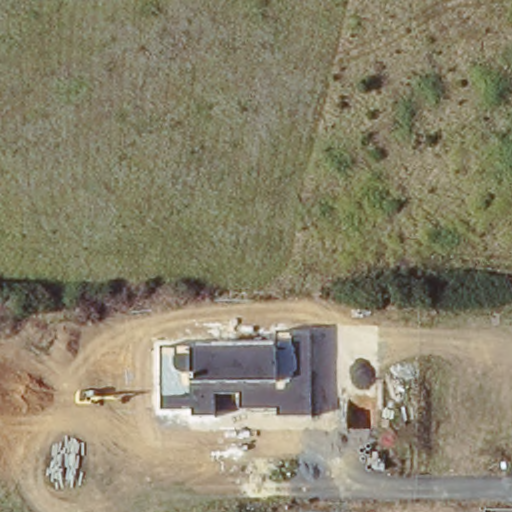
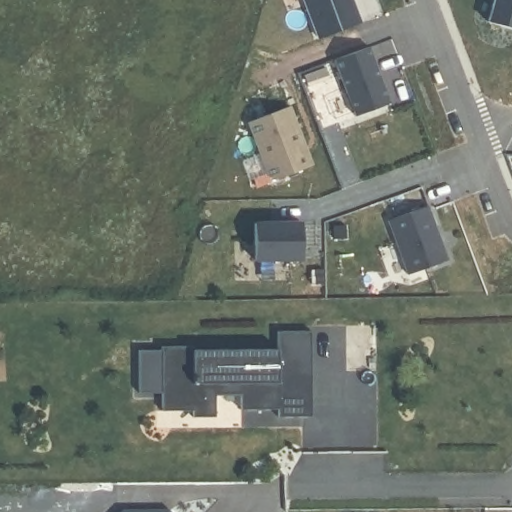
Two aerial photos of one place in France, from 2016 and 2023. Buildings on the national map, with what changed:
new [(362,25),(317,42),(300,0),(352,0),(362,25)]
new [(512,28),(486,21),(491,0),(512,0),(512,28)]
new [(392,103),(354,117),(332,60),(370,46),(392,103)]
new [(313,166),(270,183),(247,122),(292,106),(313,166)]
new [(448,260),(407,276),(387,220),(428,205),(448,260)]
new [(302,222),(303,263),(256,263),(256,222),(302,222)]
unchanged [(277,345),(277,335),(310,333),(311,416),(278,418),(277,409),(242,410),(241,395),(215,396),(217,417),(192,419),(192,412),(163,412),(161,348),(277,345)]
new [(167,510),(169,512),(119,512),(122,510),(167,510)]

